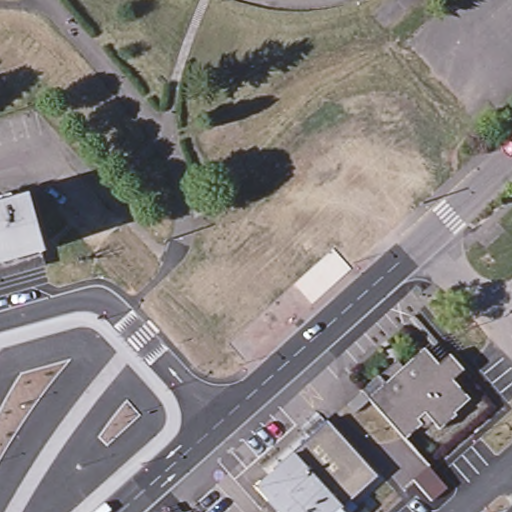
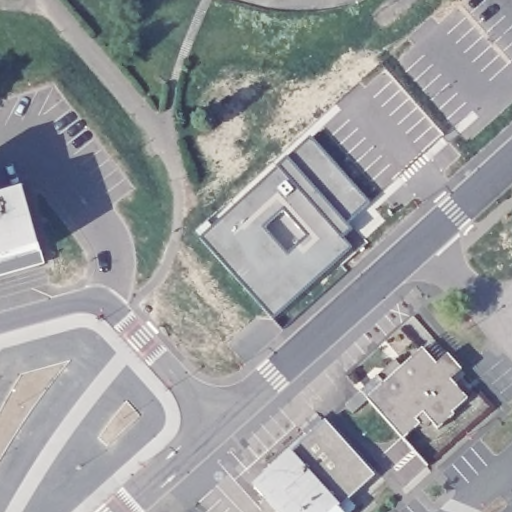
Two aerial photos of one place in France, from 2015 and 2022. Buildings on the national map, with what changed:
new [(311,134),(369,200),(346,220),(352,227),(344,235),(352,245),(339,255),(264,175),(311,134)]
new [(264,175),(339,255),(272,315),(198,233),(264,175)]
unchanged [(31,195),(46,251),(0,265),(0,204),(31,195)]
unchanged [(460,376),(453,384),(469,402),(454,416),(455,418),(440,432),(431,420),(431,425),(429,427),(424,430),(419,428),(404,443),(362,395),(379,379),(382,382),(400,367),(403,371),(422,355),(426,351),(438,365),(448,358),(454,365),(458,370),(457,372),(460,376)]
unchanged [(328,417),(378,474),(339,507),(338,506),(331,512),(283,512),(256,481),(274,467),(273,465),(328,417)]
unchanged [(436,499),(418,479),(425,471),(428,468),(432,465),(451,486),(447,489),(443,493),(436,499)]

